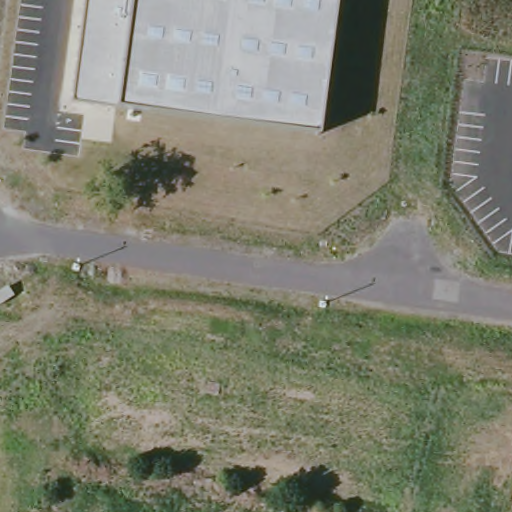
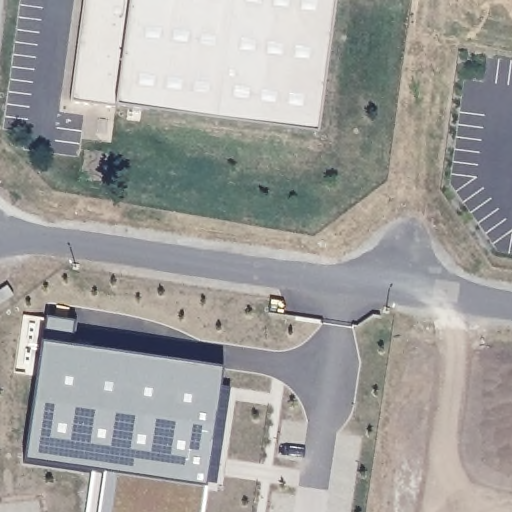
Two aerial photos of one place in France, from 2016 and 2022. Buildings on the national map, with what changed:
unchanged [(318,133),(115,107),(72,101),(85,0),(336,0),(318,133)]
new [(232,386),(217,484),(207,483),(203,512),(87,512),(93,469),(25,462),(45,314),(75,318),(75,344),(223,364),(222,383),(232,386)]

